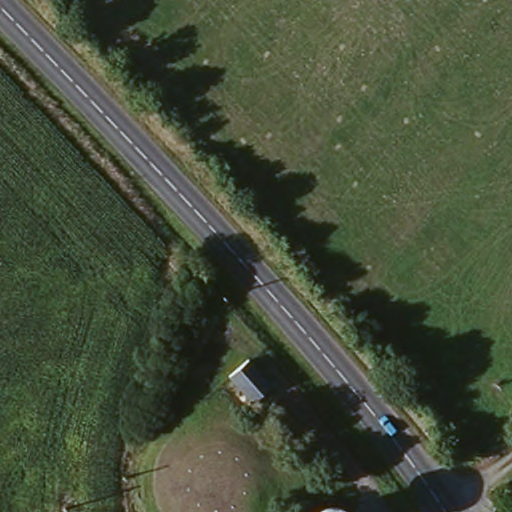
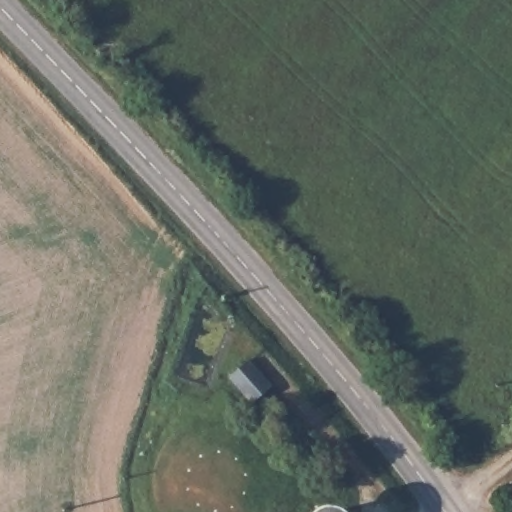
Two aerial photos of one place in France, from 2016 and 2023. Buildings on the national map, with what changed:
unchanged [(248,356),(274,384),(253,404),(227,376),(248,356)]

